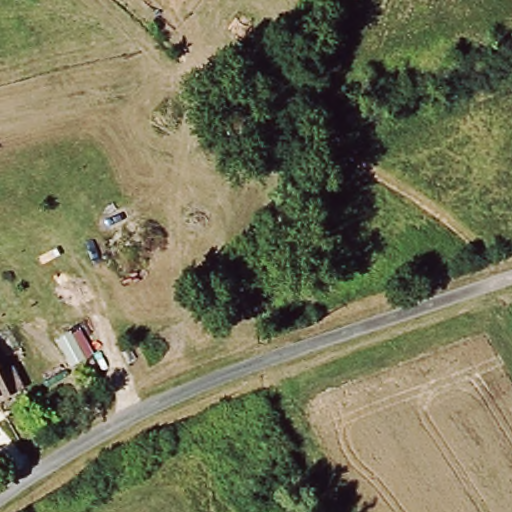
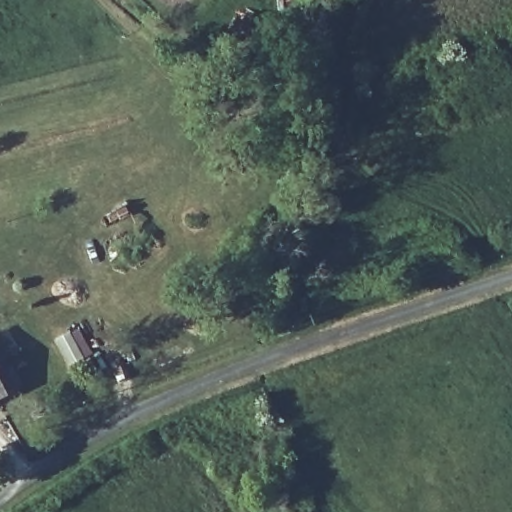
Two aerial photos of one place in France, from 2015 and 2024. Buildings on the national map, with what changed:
unchanged [(8,394),(0,399),(0,377),(8,394)]

